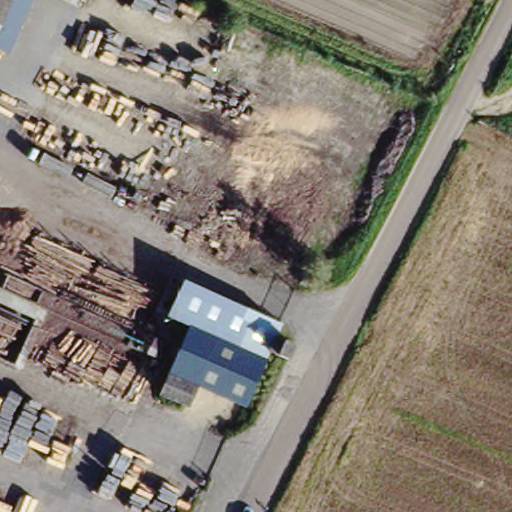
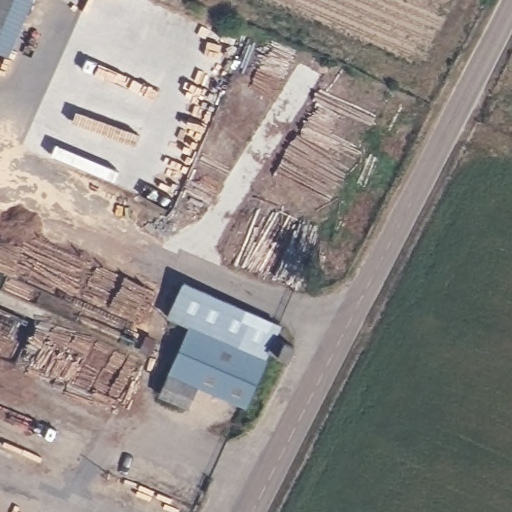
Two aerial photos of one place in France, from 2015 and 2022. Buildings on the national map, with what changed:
unchanged [(0,33),(0,0),(14,0),(0,33)]
unchanged [(12,56),(0,51),(0,33),(14,0),(35,0),(12,56)]
unchanged [(289,360),(266,350),(240,407),(199,392),(188,406),(162,392),(190,327),(167,317),(183,283),(277,324),(273,335),(296,346),(289,360)]

